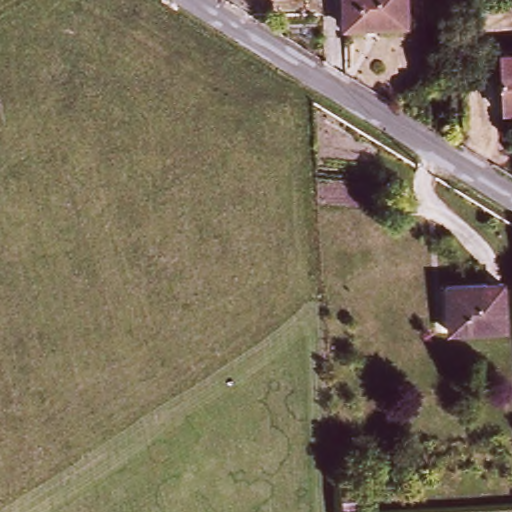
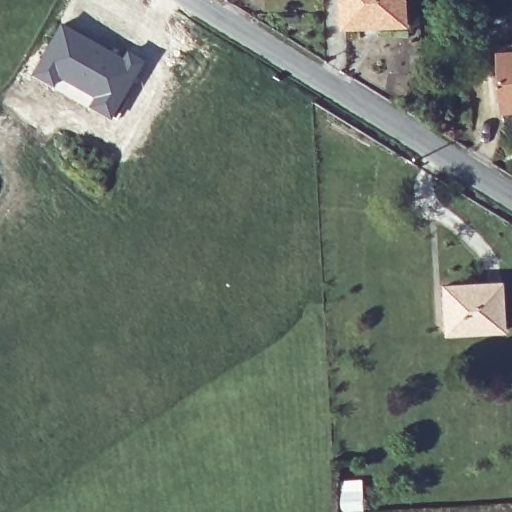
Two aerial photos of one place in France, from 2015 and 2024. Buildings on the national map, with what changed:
unchanged [(368,29),(345,28),(345,0),(405,0),(406,21),(406,30),(368,29)]
new [(61,21),(123,54),(128,47),(148,59),(112,120),(30,74),(61,21)]
unchanged [(507,120),(505,48),(512,48),(512,120),(507,120)]
unchanged [(450,289),(504,285),(506,332),(451,335),(450,289)]
unchanged [(363,510),(342,509),(342,491),(364,491),(363,510)]

